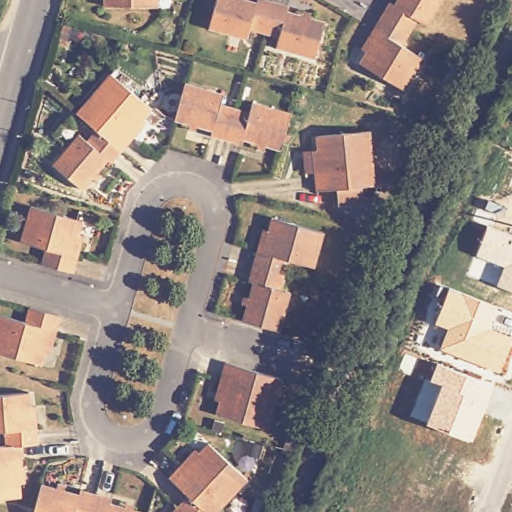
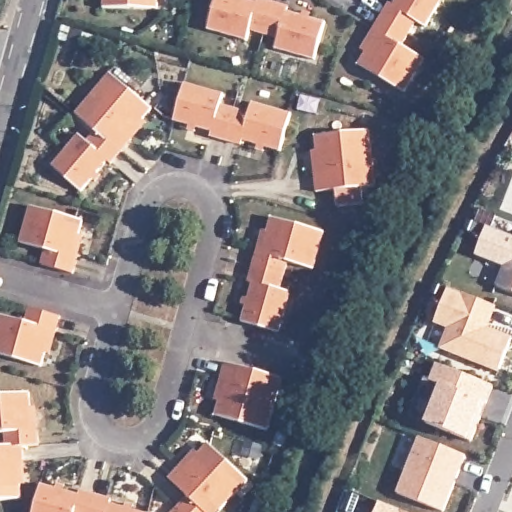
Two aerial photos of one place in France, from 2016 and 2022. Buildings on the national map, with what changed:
unchanged [(105,5),(105,0),(158,0),(158,6),(105,5)]
unchanged [(258,0),(274,0),(291,5),(289,10),(302,14),(304,9),(311,11),(310,16),(323,21),(312,55),(278,45),(281,36),(252,27),(249,36),(214,26),(221,0),(252,0),(257,1),(258,0)]
unchanged [(391,0),(396,3),(397,0),(441,0),(427,23),(419,18),(402,45),(425,58),(406,89),(362,62),(369,51),(362,47),(374,29),(391,0)]
unchanged [(92,184),(88,180),(78,191),(49,166),(75,136),(83,143),(93,131),(74,113),(107,73),(149,109),(140,119),(145,123),(130,141),(108,165),(104,161),(94,173),(98,177),(92,184)]
unchanged [(255,146),(257,140),(245,136),(244,143),(213,133),(214,128),(200,124),(198,129),(190,126),(191,121),(177,116),(186,81),(224,93),(221,101),(252,110),(254,101),(292,112),(281,147),(267,143),(265,149),(255,146)]
unchanged [(374,185),(363,186),(364,202),(339,204),(337,187),(317,189),(315,171),(313,148),(319,148),(317,134),(370,130),(374,185)]
unchanged [(74,253),(69,271),(36,262),(41,244),(17,237),(27,202),(79,217),(75,230),(80,232),(74,253)]
unchanged [(249,293),(254,295),(258,280),(253,279),(262,247),(268,227),(273,228),(277,215),(329,231),(319,264),(295,257),(285,288),(294,291),(283,329),(247,319),(251,303),(246,301),(249,293)]
unchanged [(512,235),(512,291),(497,285),(504,266),(475,254),(486,225),(512,235)]
unchanged [(448,288),(498,307),(490,327),(512,336),(512,338),(498,372),(424,342),(448,288)]
unchanged [(41,362),(0,349),(0,312),(24,319),(29,304),(61,313),(61,314),(57,328),(51,351),(45,349),(41,362)]
unchanged [(494,387),(472,439),(424,420),(439,386),(427,382),(435,363),(494,387)]
unchanged [(216,415),(220,403),(215,401),(221,380),(225,366),(262,377),(282,382),(268,429),(216,415)]
unchanged [(21,493),(0,494),(0,443),(6,443),(6,427),(0,427),(0,392),(30,391),(30,402),(36,402),(37,425),(38,441),(24,442),(25,457),(26,479),(20,479),(21,493)]
new [(420,436),(467,455),(444,512),(443,512),(397,493),(420,436)]
unchanged [(177,506),(186,497),(168,479),(179,468),(195,452),(199,456),(209,445),(247,481),(217,512),(171,512),(177,506)]
unchanged [(58,489),(66,491),(65,497),(78,500),(79,495),(111,504),(110,510),(118,512),(34,512),(41,490),(56,494),(58,489)]
unchanged [(406,512),(374,512),(378,501),(406,512)]
unchanged [(124,508),(135,511),(134,512),(123,512),(124,508)]

